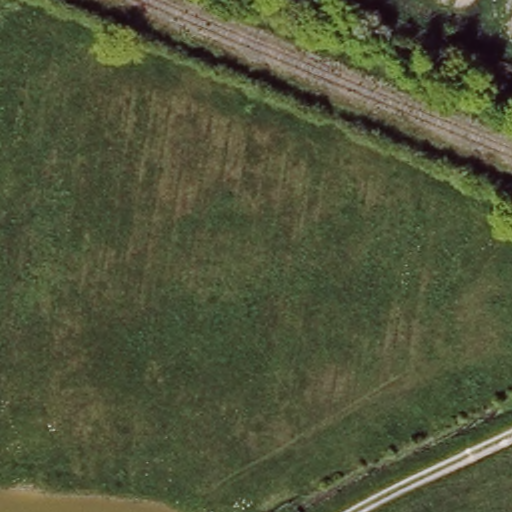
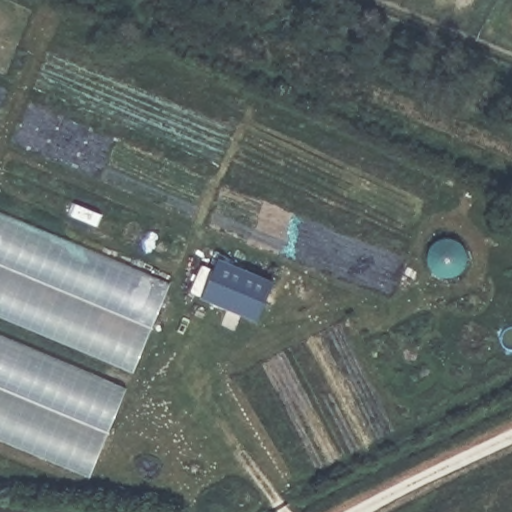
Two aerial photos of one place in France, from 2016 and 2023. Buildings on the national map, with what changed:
new [(135,373),(0,317),(0,212),(171,283),(135,373)]
new [(258,320),(201,298),(216,257),(273,281),(258,320)]
new [(90,478),(0,439),(0,335),(127,387),(90,478)]

